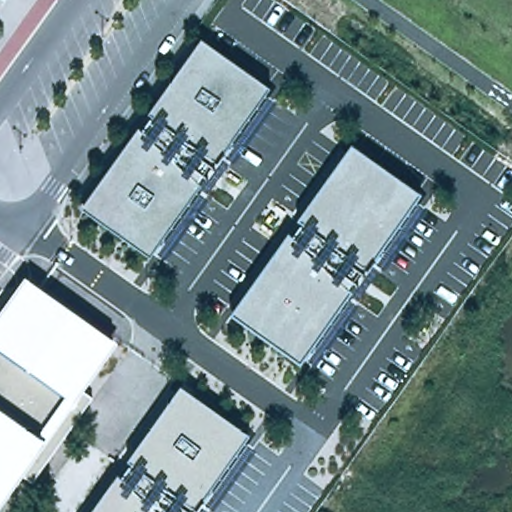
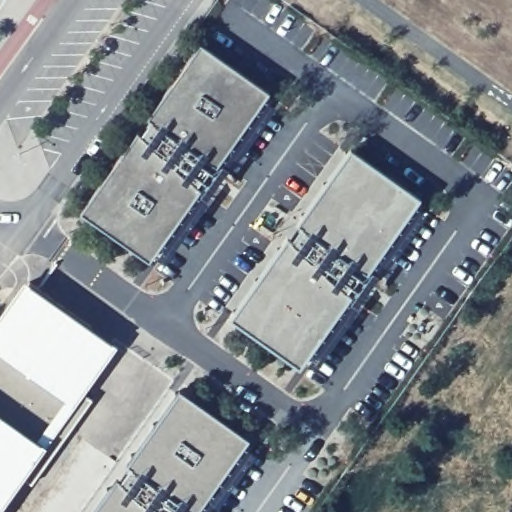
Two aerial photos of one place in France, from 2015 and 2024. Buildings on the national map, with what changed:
unchanged [(270,94),(157,254),(85,202),(199,43),(270,94)]
unchanged [(235,309),(349,150),(420,200),(302,355),(235,309)]
unchanged [(114,340),(79,388),(91,397),(70,427),(31,481),(19,473),(0,500),(0,324),(30,281),(114,340)]
unchanged [(250,441),(199,512),(91,512),(177,390),(250,441)]

